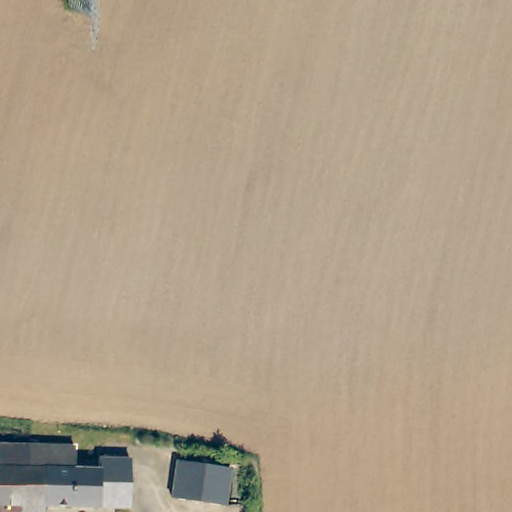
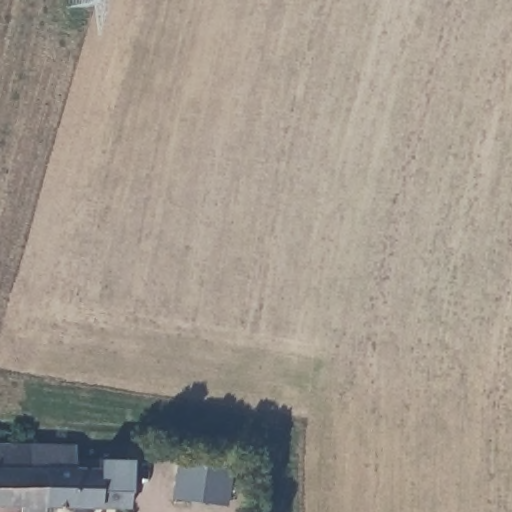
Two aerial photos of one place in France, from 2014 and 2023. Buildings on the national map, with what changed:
unchanged [(28,470),(41,471),(43,507),(0,506),(0,445),(28,446),(28,470)]
unchanged [(74,469),(98,470),(98,460),(107,460),(130,459),(130,487),(130,507),(43,507),(41,471),(28,470),(28,446),(74,447),(74,469)]
unchanged [(175,461),(231,469),(224,506),(169,498),(175,461)]

